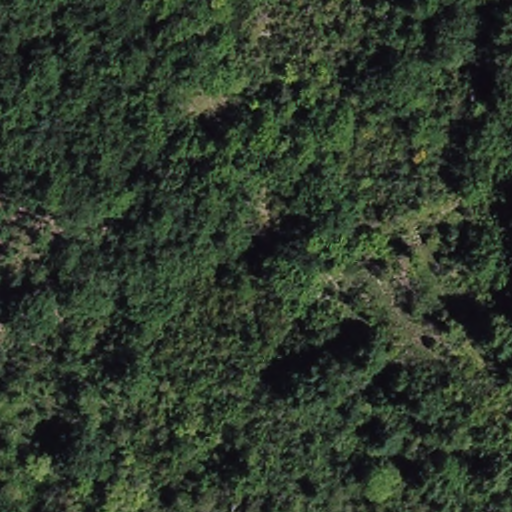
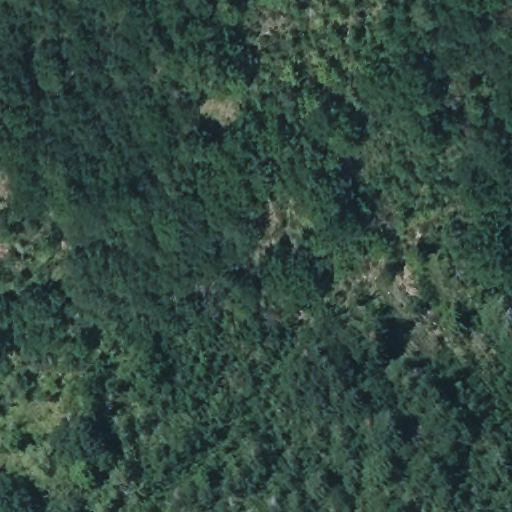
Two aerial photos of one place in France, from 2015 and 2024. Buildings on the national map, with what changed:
[]

